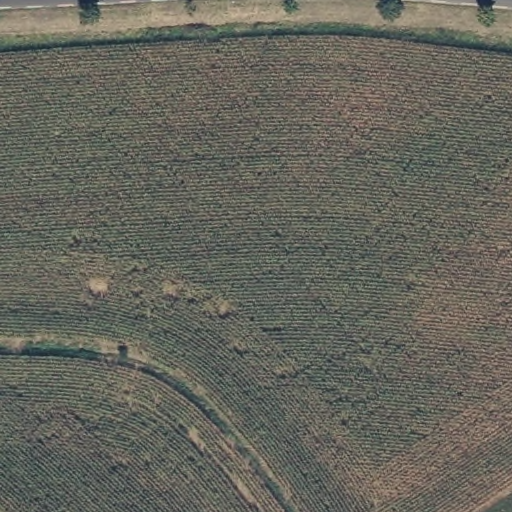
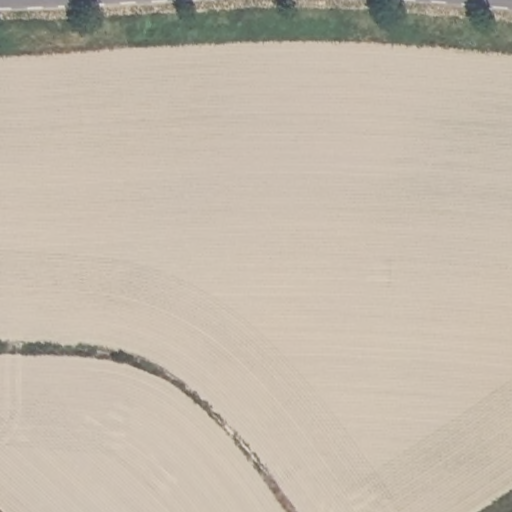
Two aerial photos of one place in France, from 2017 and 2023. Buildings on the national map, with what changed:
[]

